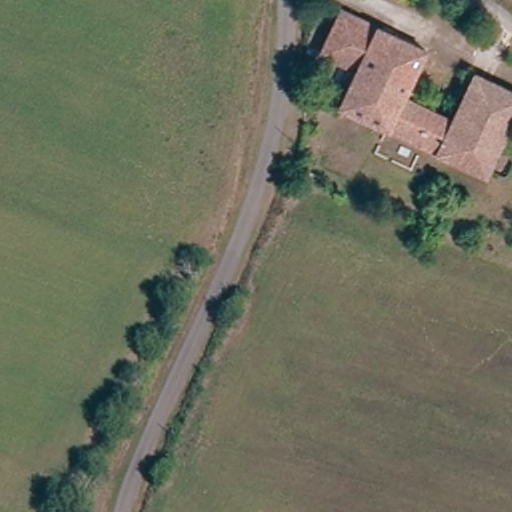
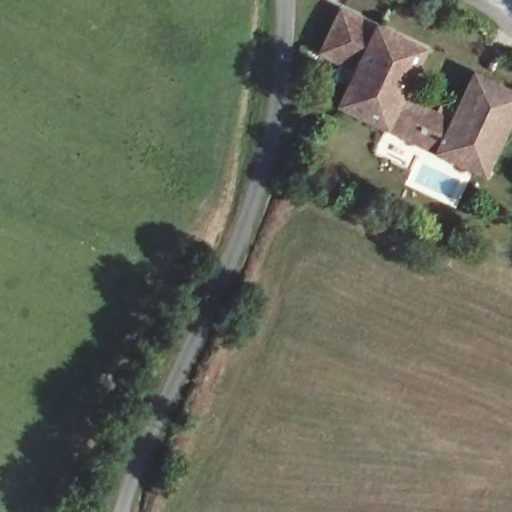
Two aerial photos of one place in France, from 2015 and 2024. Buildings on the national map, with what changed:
unchanged [(331,101),(344,70),(324,61),(335,28),(413,61),(399,91),(458,119),(473,91),(512,110),(512,123),(489,174),(331,101)]

